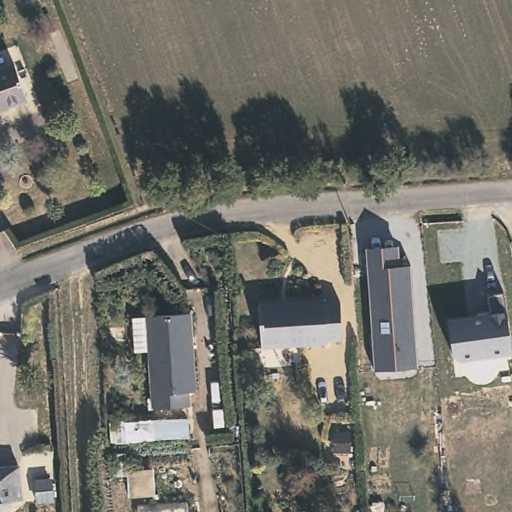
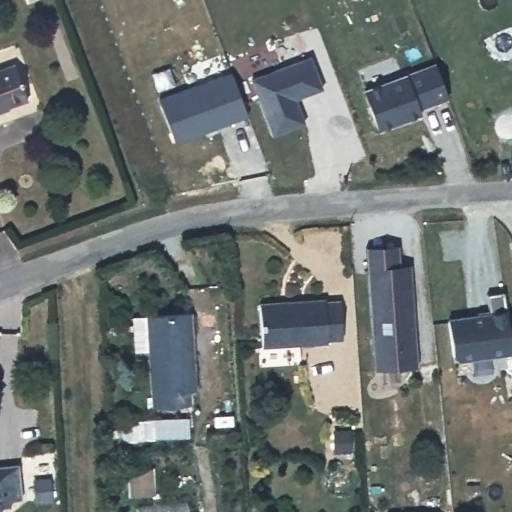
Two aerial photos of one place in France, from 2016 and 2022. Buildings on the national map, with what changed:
new [(310,57),(322,90),(295,100),(304,123),(273,136),(250,79),(310,57)]
unchanged [(26,63),(39,99),(0,113),(0,73),(26,63)]
new [(436,65),(448,98),(419,109),(421,114),(378,130),(364,92),(436,65)]
new [(174,145),(158,99),(229,72),(247,117),(174,145)]
unchanged [(378,371),(368,244),(389,244),(391,263),(409,263),(414,367),(378,371)]
unchanged [(263,299),(328,293),(330,297),(342,297),(345,333),(331,333),(332,337),(266,342),(263,299)]
unchanged [(455,358),(450,320),(490,313),(487,295),(503,293),(512,344),(512,355),(460,362),(455,358)]
unchanged [(194,319),(197,395),(192,395),(193,409),(156,412),(153,356),(137,356),(136,321),(194,319)]
unchanged [(18,462),(21,495),(0,496),(0,462),(18,462)]

